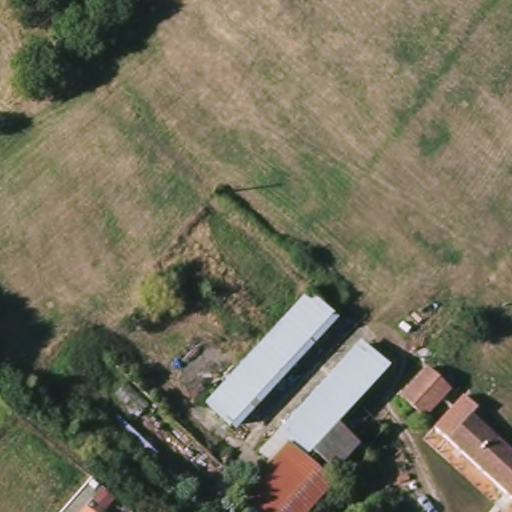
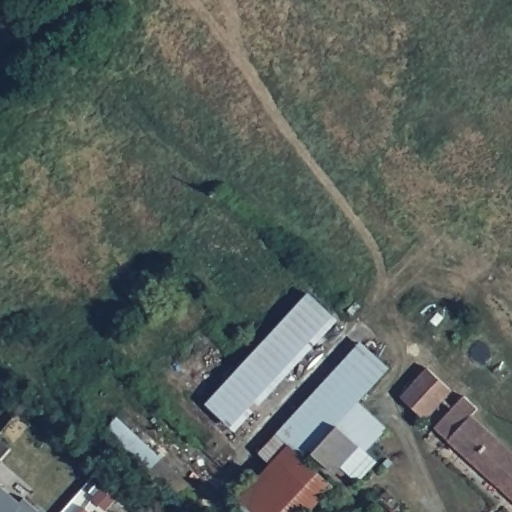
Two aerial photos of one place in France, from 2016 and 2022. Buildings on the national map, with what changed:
unchanged [(335,315),(235,434),(206,410),(307,292),(335,315)]
unchanged [(257,456),(357,339),(383,361),(329,422),(306,451),(300,459),(283,478),(257,456)]
unchanged [(442,415),(432,407),(418,421),(395,400),(421,370),(422,369),(461,405),(462,405),(464,402),(473,411),(483,421),(479,426),(512,456),(512,506),(428,433),(442,415)]
unchanged [(352,479),(341,468),(333,477),(306,451),(329,422),(358,448),(370,458),(352,479)]
unchanged [(331,487),(310,512),(256,512),(283,478),(300,459),(327,484),(331,487)]
new [(1,486),(20,502),(23,498),(39,512),(0,512),(0,488),(1,486)]
unchanged [(85,509),(88,512),(82,512),(85,509)]

